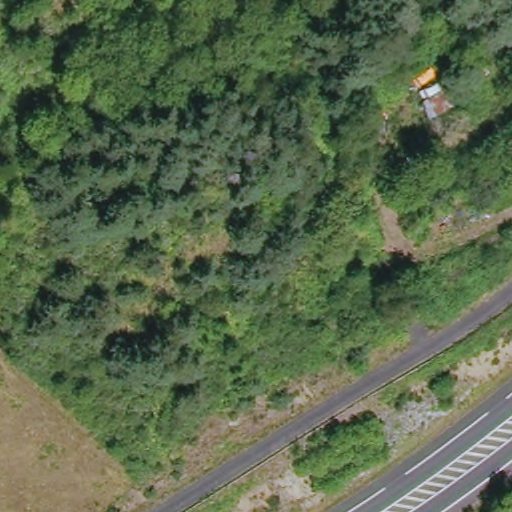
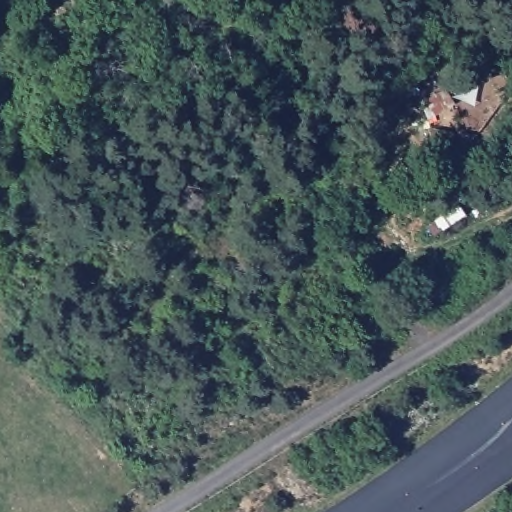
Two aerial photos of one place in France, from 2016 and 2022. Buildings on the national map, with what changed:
unchanged [(430,117),(423,107),(446,93),(451,103),(430,117)]

